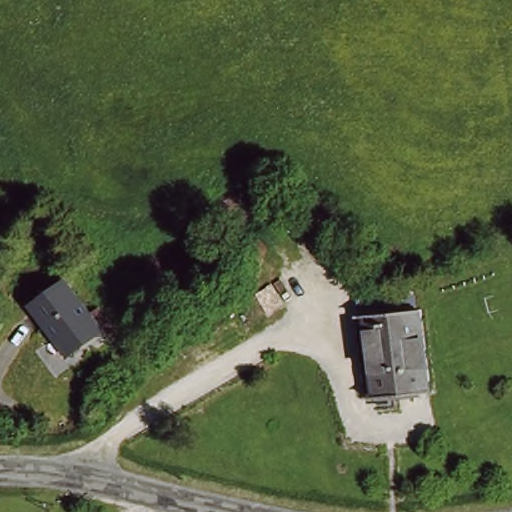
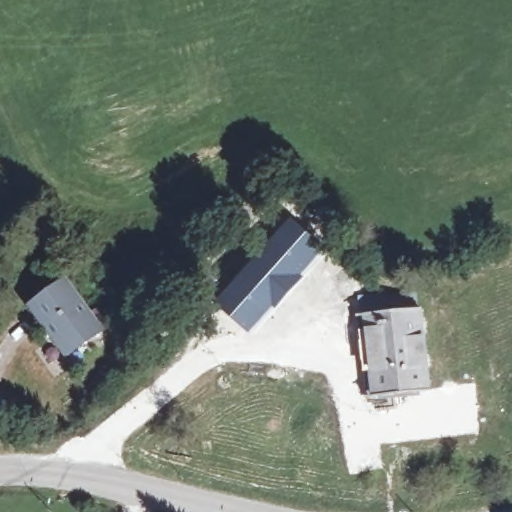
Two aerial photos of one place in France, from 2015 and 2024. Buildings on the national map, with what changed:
new [(293,216),(327,250),(291,292),(250,333),(217,301),(293,216)]
unchanged [(105,324),(95,332),(65,353),(32,308),(62,285),(84,317),(97,310),(105,324)]
unchanged [(387,312),(387,300),(415,297),(416,309),(420,309),(430,392),(376,398),(365,316),(387,312)]

